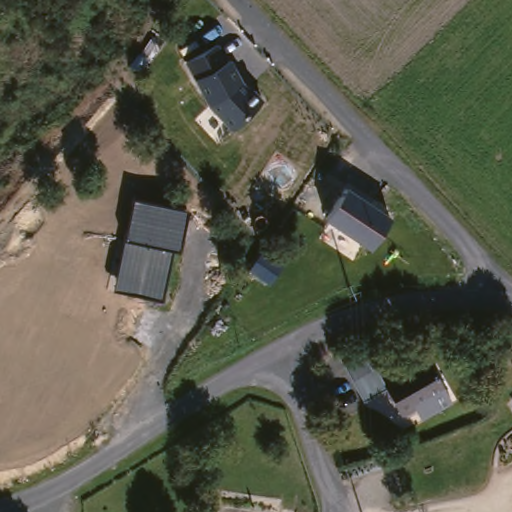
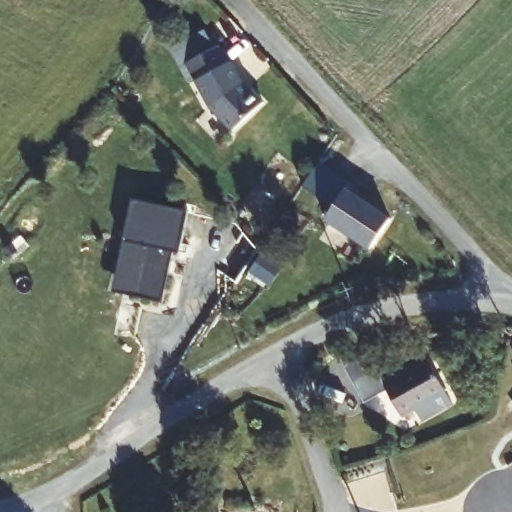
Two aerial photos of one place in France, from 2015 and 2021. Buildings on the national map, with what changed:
unchanged [(232,129),(208,105),(185,61),(212,46),(221,65),(231,59),(244,85),(264,100),(232,129)]
unchanged [(370,250),(325,220),(347,187),(390,216),(370,250)]
unchanged [(179,251),(172,249),(161,300),(112,289),(134,197),(187,210),(179,251)]
unchanged [(380,376),(383,383),(420,360),(445,396),(428,408),(424,405),(407,417),(395,401),(372,417),(355,392),(380,376)]

